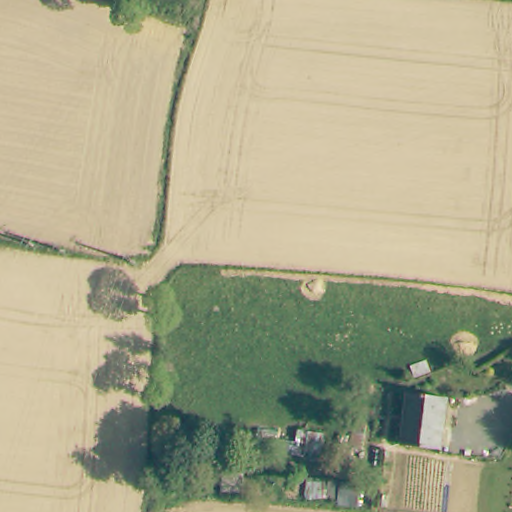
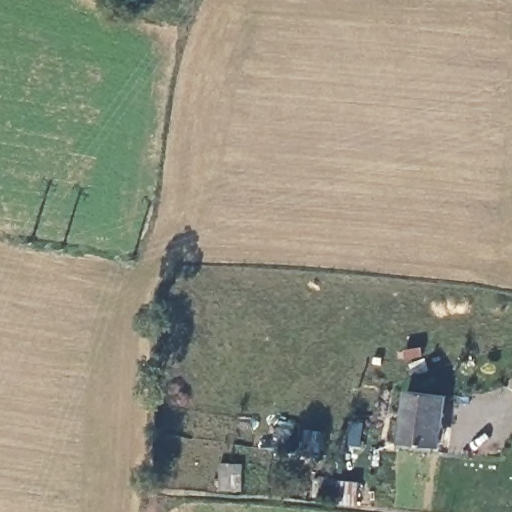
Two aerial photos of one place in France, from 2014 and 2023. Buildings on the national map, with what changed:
unchanged [(408,434),(418,383),(455,389),(448,441),(408,434)]

